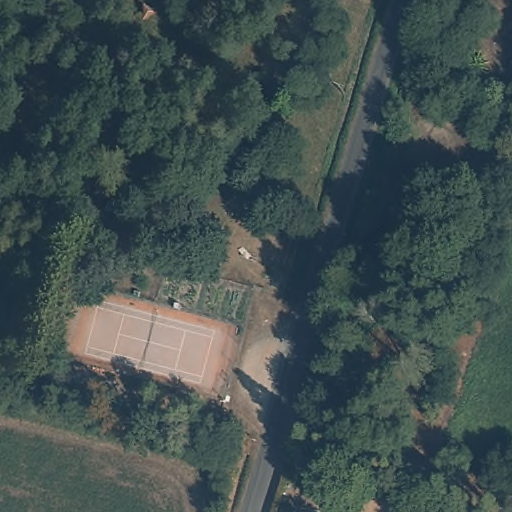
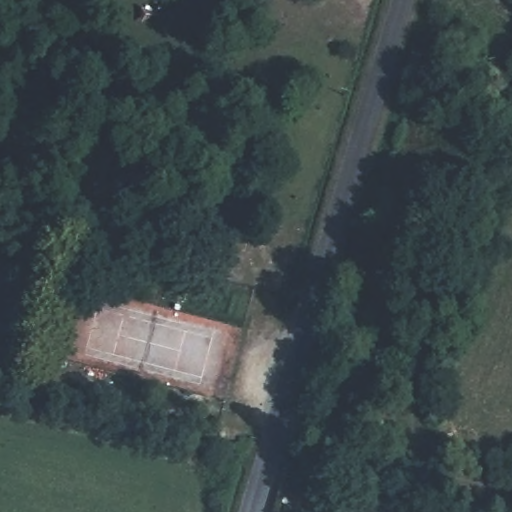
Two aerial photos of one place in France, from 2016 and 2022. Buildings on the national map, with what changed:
unchanged [(442,496),(471,498),(471,512),(441,512),(442,496)]

